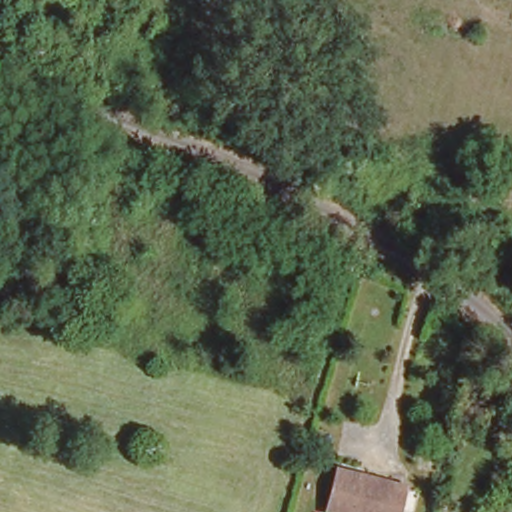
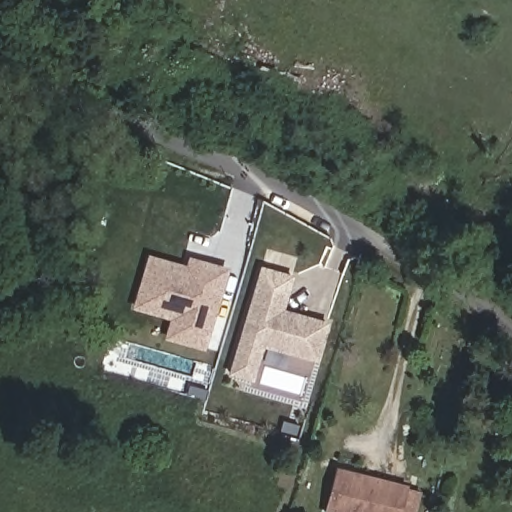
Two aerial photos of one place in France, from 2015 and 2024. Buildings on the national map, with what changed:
new [(138,307),(151,258),(189,269),(191,260),(204,263),(226,270),(205,348),(182,341),(170,338),(175,318),(138,307)]
new [(263,269),(294,278),(288,301),(283,300),(280,311),(328,325),(318,362),(266,347),(255,382),(234,376),(263,269)]
unchanged [(333,466),(397,483),(390,512),(337,512),(322,508),(333,466)]

